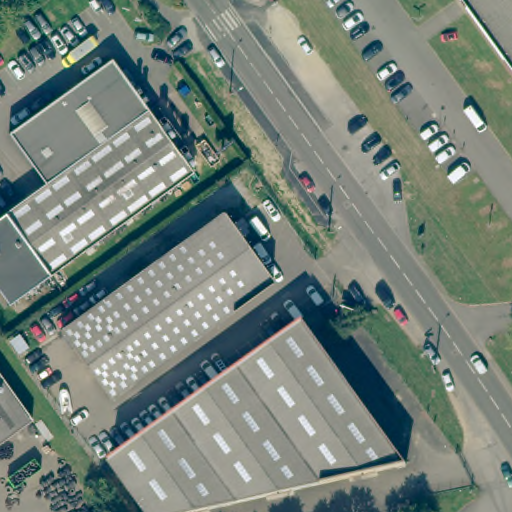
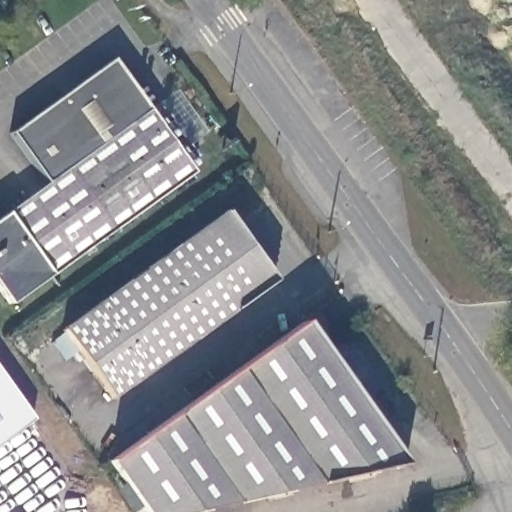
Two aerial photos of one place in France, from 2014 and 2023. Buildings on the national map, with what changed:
demolished [(464,0),(512,0),(512,65),(505,57),(464,0)]
unchanged [(8,137),(110,63),(146,114),(45,187),(8,137)]
unchanged [(6,218),(5,217),(45,187),(146,114),(190,173),(53,275),(51,273),(6,307),(0,297),(0,222),(6,218)]
unchanged [(223,209),(272,278),(110,396),(60,327),(223,209)]
unchanged [(172,512),(162,512),(118,452),(311,312),(413,458),(172,512)]
unchanged [(32,415),(0,438),(0,371),(32,415)]

